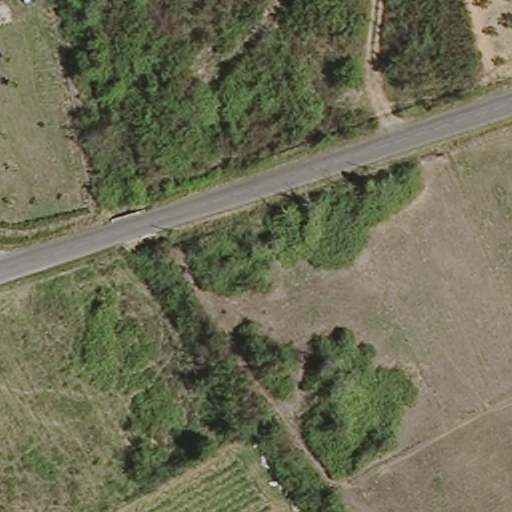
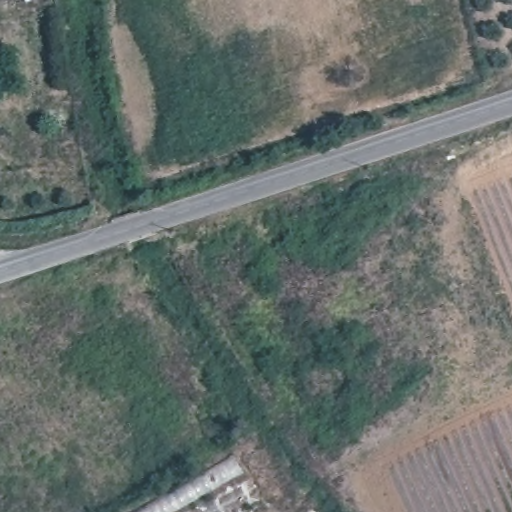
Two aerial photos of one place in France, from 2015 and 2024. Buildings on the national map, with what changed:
new [(267,512),(135,512),(234,456),(267,512)]

